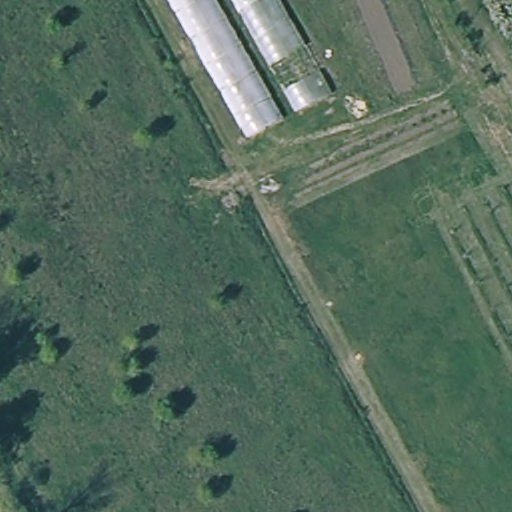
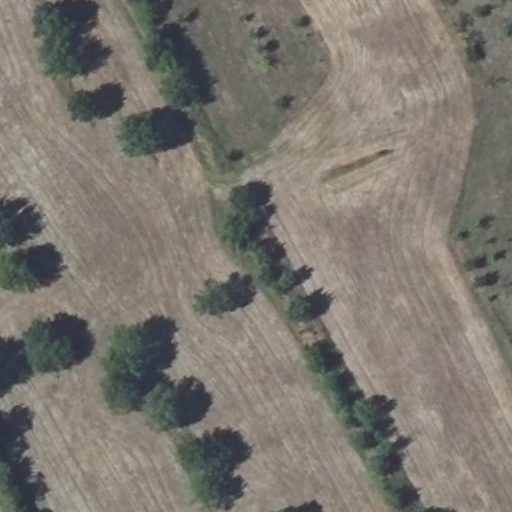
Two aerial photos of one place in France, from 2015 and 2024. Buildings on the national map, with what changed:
demolished [(336,82),(253,129),(179,0),(289,0),(336,82)]

